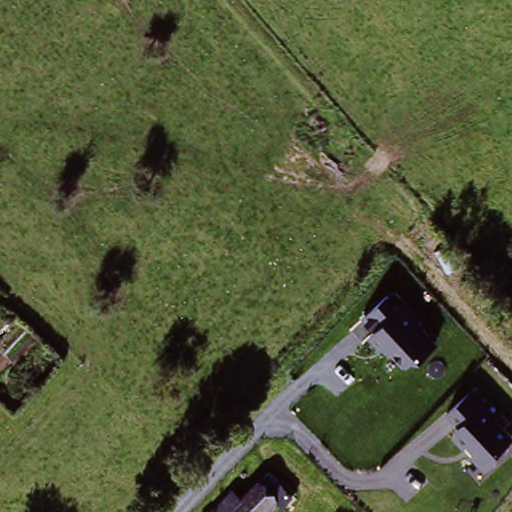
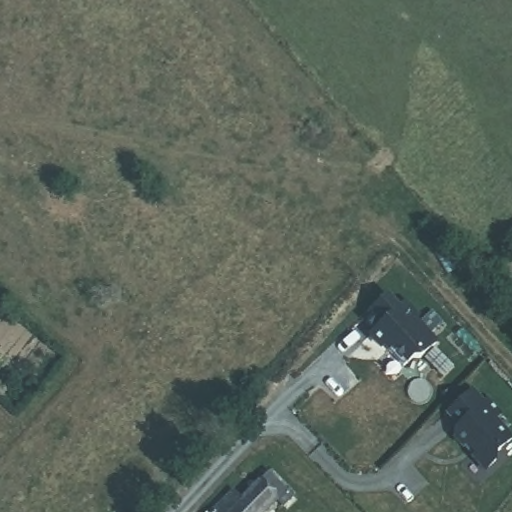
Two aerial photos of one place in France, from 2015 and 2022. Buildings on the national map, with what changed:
unchanged [(399,307),(405,301),(420,317),(415,321),(435,343),(403,367),(370,335),(375,331),(362,314),(387,295),(399,307)]
unchanged [(487,397),(503,413),(499,419),(512,434),(512,441),(484,474),(452,441),(454,430),(440,417),(473,385),(484,401),(487,397)]
unchanged [(274,502),(265,512),(227,512),(255,483),(274,502)]

